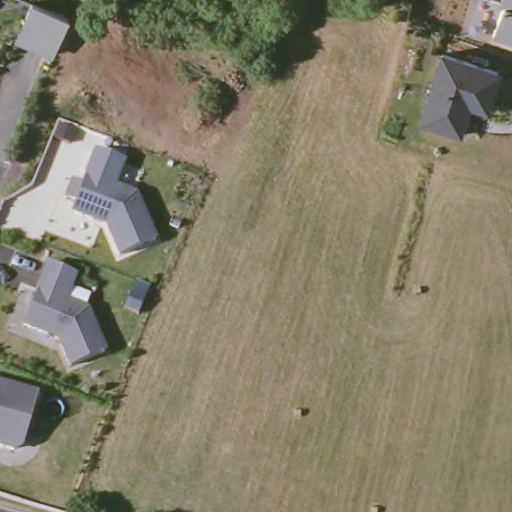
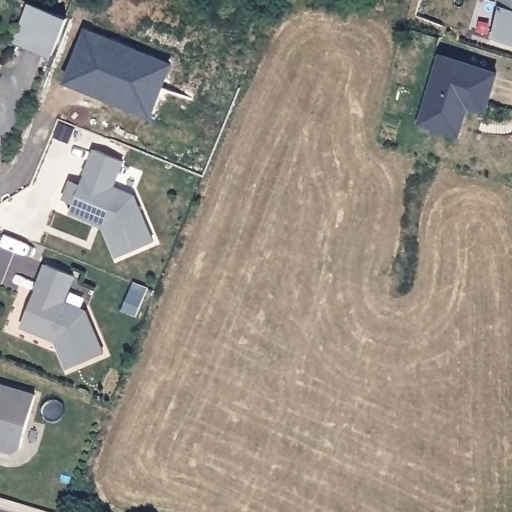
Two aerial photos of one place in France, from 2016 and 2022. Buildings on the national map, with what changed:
unchanged [(491,41),(500,8),(497,8),(499,0),(512,0),(512,46),(491,41)]
unchanged [(68,21),(52,57),(15,40),(32,4),(68,21)]
new [(64,82),(84,26),(173,60),(152,117),(64,82)]
unchanged [(443,54),(501,72),(489,115),(471,109),(461,139),(420,126),(443,54)]
unchanged [(72,128),(67,142),(53,137),(58,123),(72,128)]
unchanged [(120,159),(111,185),(133,193),(152,238),(116,254),(101,219),(94,216),(90,219),(69,211),(72,203),(63,199),(70,181),(79,184),(92,149),(120,159)]
unchanged [(75,274),(65,300),(87,309),(105,352),(70,366),(57,335),(51,332),(48,333),(23,324),(48,263),(75,274)]
unchanged [(142,298),(134,317),(122,312),(129,293),(142,298)]
unchanged [(37,392),(23,443),(15,445),(0,441),(0,382),(37,392)]

